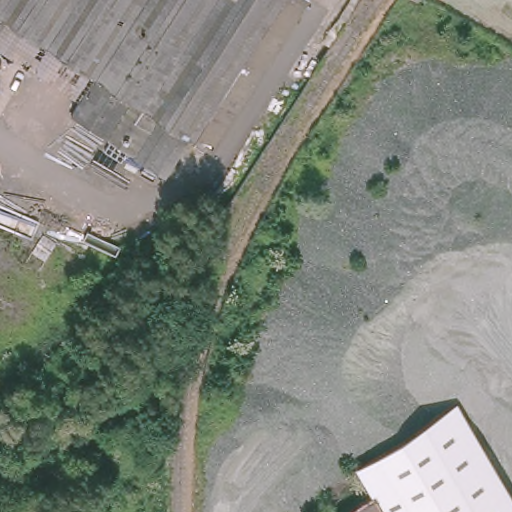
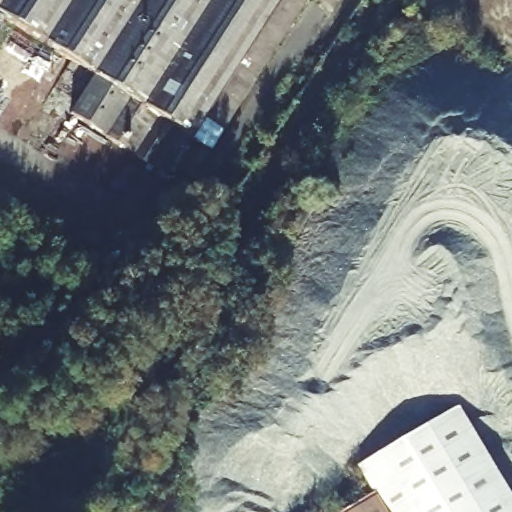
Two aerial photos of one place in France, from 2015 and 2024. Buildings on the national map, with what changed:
unchanged [(182,133),(158,170),(60,106),(84,69),(0,15),(0,0),(298,0),(280,29),(202,146),(182,133)]
unchanged [(22,40),(12,55),(0,47),(0,42),(7,30),(22,40)]
unchanged [(457,408),(512,500),(512,512),(508,512),(449,413),(457,408)]
unchanged [(360,466),(449,413),(508,512),(341,512),(375,491),(360,466)]

